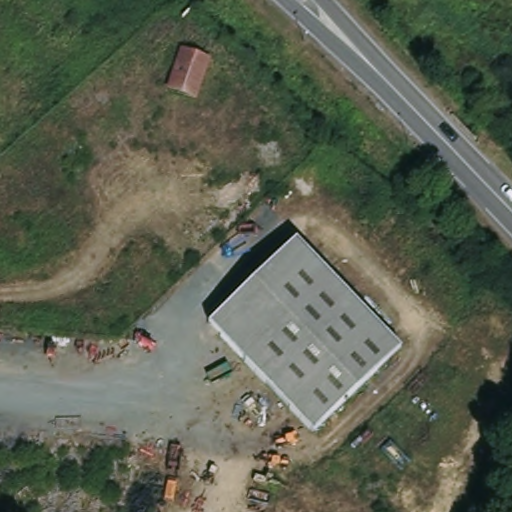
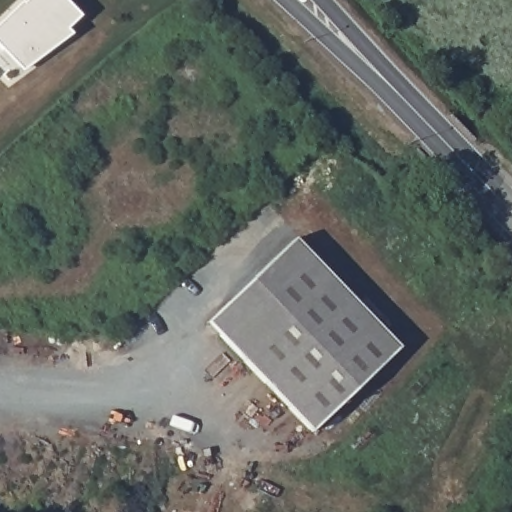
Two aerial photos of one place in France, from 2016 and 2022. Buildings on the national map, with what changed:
new [(65,30),(70,34),(22,71),(0,48),(0,23),(24,0),(65,0),(81,16),(65,30)]
unchanged [(401,347),(313,432),(221,335),(208,322),(219,312),(296,238),(401,347)]

